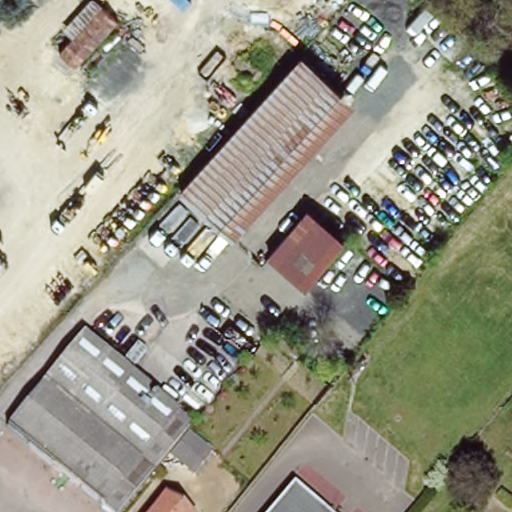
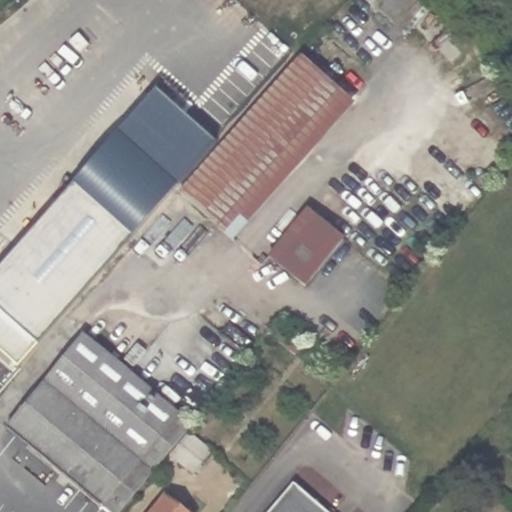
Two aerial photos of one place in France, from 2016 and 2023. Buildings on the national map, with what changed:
unchanged [(233,240),(180,192),(301,57),(354,105),(233,240)]
new [(158,90),(219,145),(136,238),(74,184),(158,90)]
new [(20,369),(0,352),(0,268),(74,184),(136,238),(20,369)]
unchanged [(308,290),(268,256),(306,207),(349,240),(308,290)]
unchanged [(114,512),(6,425),(83,331),(192,419),(117,512),(114,512)]
unchanged [(268,512),(292,483),(326,512),(268,512)]
unchanged [(186,512),(149,512),(164,494),(186,512)]

